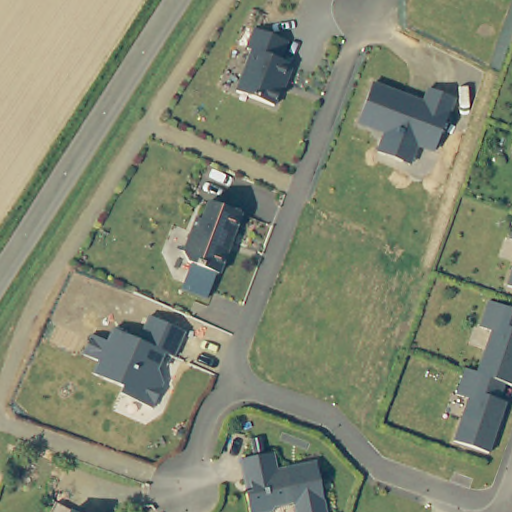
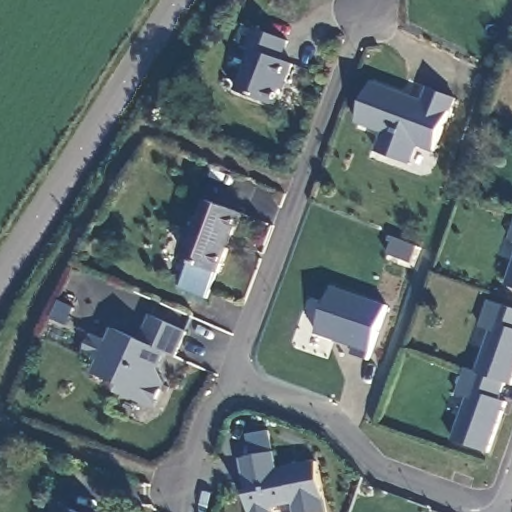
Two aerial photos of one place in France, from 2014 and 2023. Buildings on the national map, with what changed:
unchanged [(234,95),(251,52),(246,51),(253,32),(285,44),(278,64),(290,67),(283,85),(281,84),(272,108),(234,95)]
unchanged [(401,161),(376,151),(384,131),(356,121),(371,82),(407,96),(422,102),(428,88),(453,97),(433,150),(416,143),(408,164),(401,161)]
unchanged [(184,257),(197,225),(203,226),(210,208),(242,220),(234,242),(231,241),(228,254),(229,255),(219,279),(189,267),(184,257)]
unchanged [(509,287),(512,278),(512,288),(509,287)]
new [(334,285),(387,304),(367,358),(351,353),(354,345),(317,332),(334,285)]
unchanged [(472,397),(460,394),(469,368),(481,372),(495,329),(484,327),(491,301),(512,308),(512,384),(508,383),(502,401),(509,402),(493,452),(457,441),(472,397)]
unchanged [(171,357),(161,353),(155,369),(161,383),(150,408),(116,394),(120,387),(91,374),(96,361),(80,354),(89,335),(105,342),(111,329),(136,340),(147,316),(183,332),(171,357)]
unchanged [(275,452),(279,469),(318,462),(328,512),(296,512),(295,503),(277,505),(273,509),(257,512),(251,512),(247,492),(253,490),(251,480),(247,480),(242,459),(275,452)]
unchanged [(74,512),(64,512),(66,508),(74,512)]

